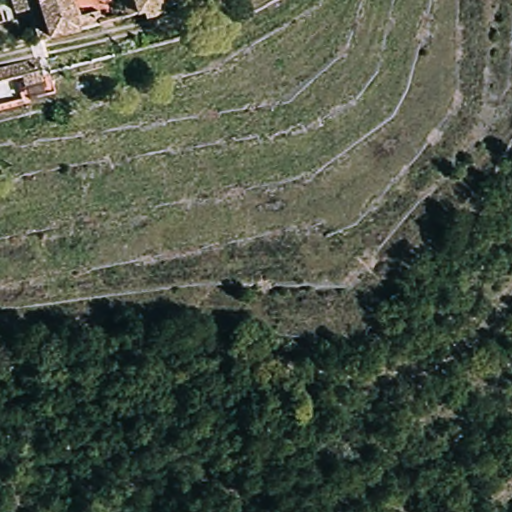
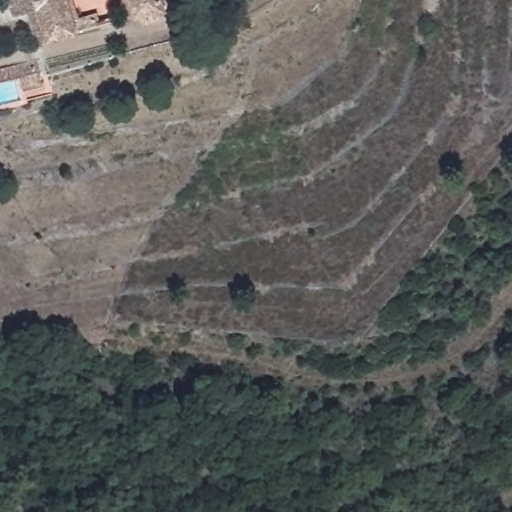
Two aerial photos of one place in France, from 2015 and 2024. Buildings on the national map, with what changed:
unchanged [(15,15),(10,0),(73,0),(78,19),(92,15),(95,26),(41,41),(33,10),(15,15)]
unchanged [(162,11),(122,21),(116,0),(159,0),(162,11)]
unchanged [(162,11),(159,0),(172,0),(174,8),(162,11)]

